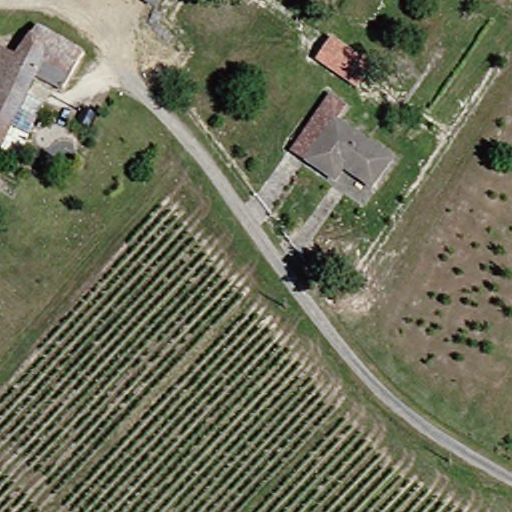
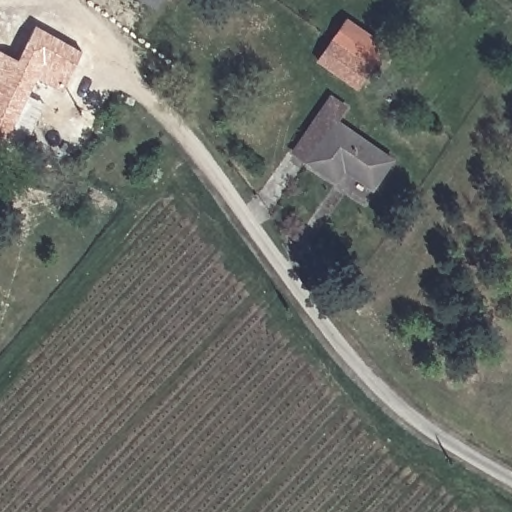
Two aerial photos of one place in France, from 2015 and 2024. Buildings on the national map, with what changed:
unchanged [(141,8),(130,0),(157,0),(150,13),(141,8)]
unchanged [(10,59),(30,24),(59,43),(74,53),(54,90),(39,79),(29,72),(0,123),(0,53),(10,59)]
unchanged [(360,89),(335,72),(318,60),(332,39),(349,51),(374,68),(360,89)]
unchanged [(371,191),(341,170),(333,182),(283,148),(322,90),(347,107),(335,124),(391,162),(371,191)]

